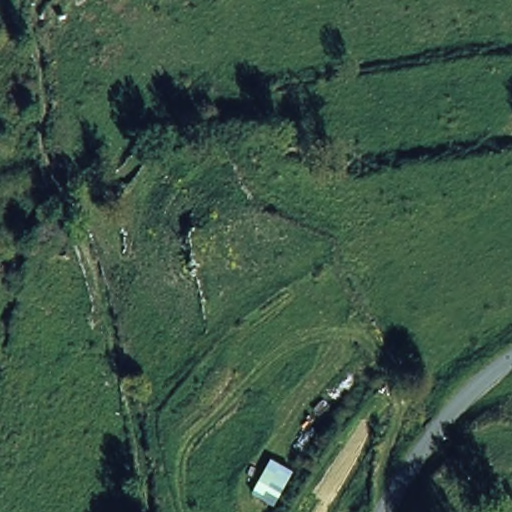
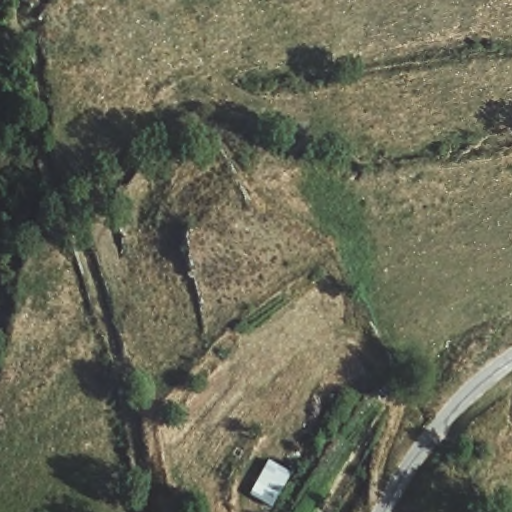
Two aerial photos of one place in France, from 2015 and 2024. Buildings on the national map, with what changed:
unchanged [(274,507),(246,493),(267,461),(291,473),(274,507)]

